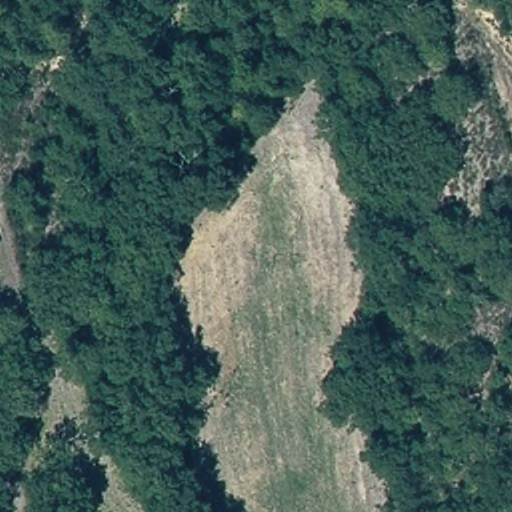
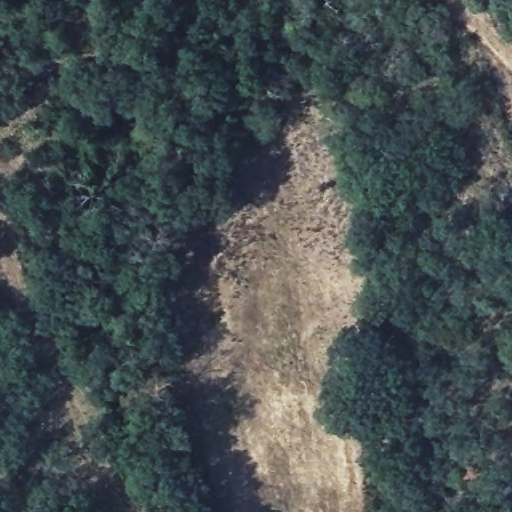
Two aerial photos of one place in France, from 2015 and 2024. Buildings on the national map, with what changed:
[]

